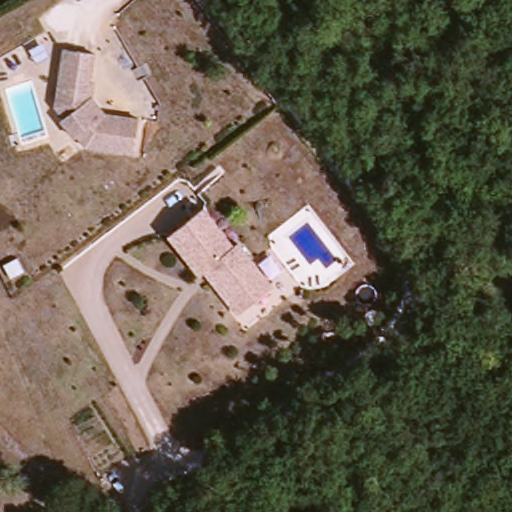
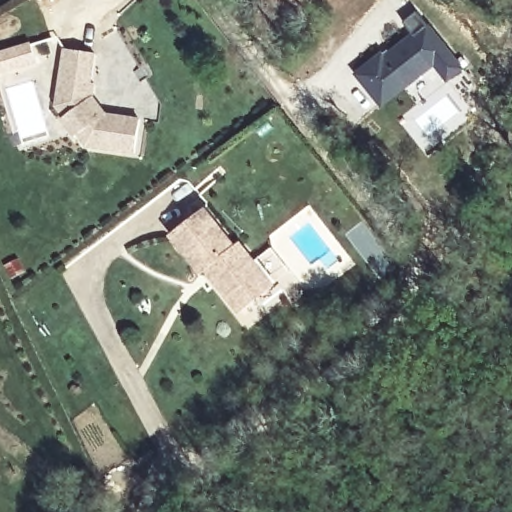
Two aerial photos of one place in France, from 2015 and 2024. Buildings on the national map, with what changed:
new [(388,52),(390,55),(413,37),(402,24),(416,13),(462,70),(448,81),(435,65),(406,89),(403,86),(380,105),(358,77),(382,56),(388,52)]
new [(37,64),(0,75),(0,51),(31,42),(37,64)]
unchanged [(60,99),(67,44),(97,48),(93,76),(96,76),(95,92),(107,108),(141,113),(136,147),(90,140),(80,129),(77,130),(65,113),(67,110),(60,99)]
unchanged [(228,302),(211,280),(216,275),(209,268),(200,276),(170,239),(203,212),(232,250),(238,246),(270,289),(252,303),(238,314),(228,302)]

